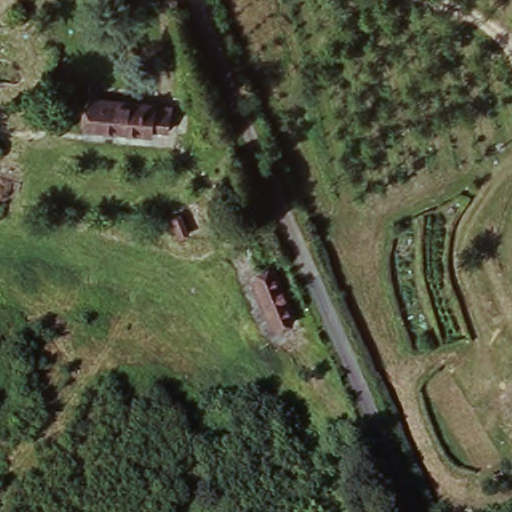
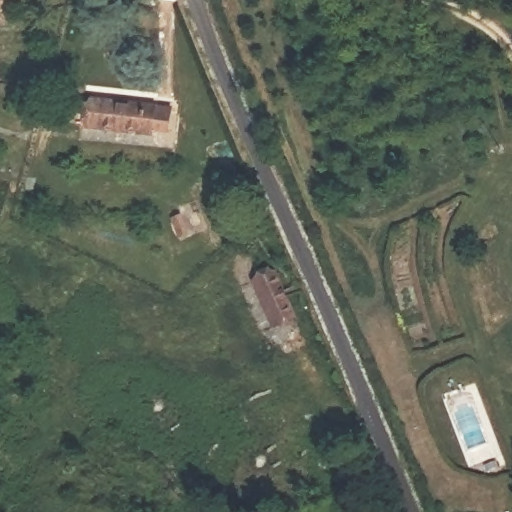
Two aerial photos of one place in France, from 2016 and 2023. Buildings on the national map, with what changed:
unchanged [(174,105),(171,137),(87,129),(91,97),(174,105)]
unchanged [(278,266),(300,322),(274,332),(249,279),(278,266)]

